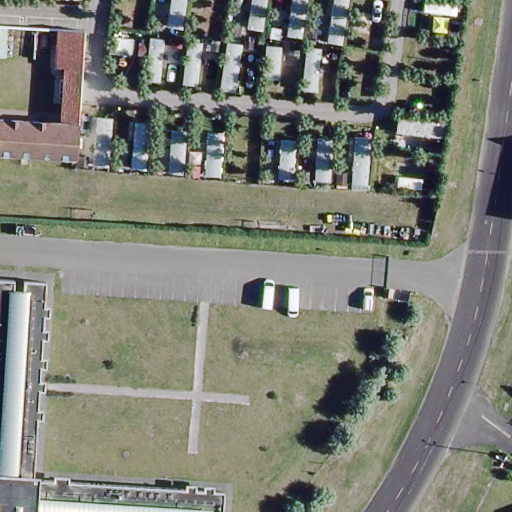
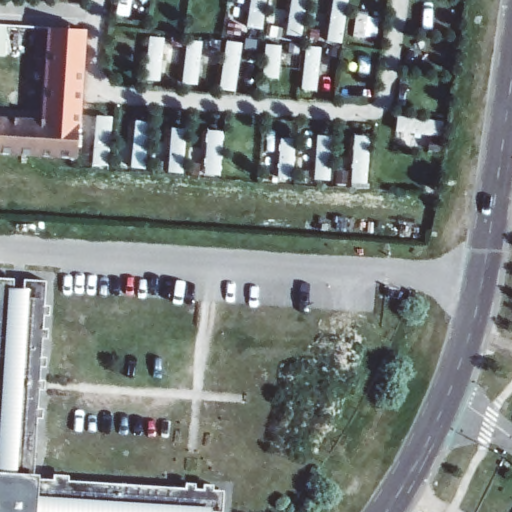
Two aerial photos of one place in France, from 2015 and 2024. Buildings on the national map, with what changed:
unchanged [(62,64),(55,64),(56,26),(84,28),(75,155),(0,150),(0,117),(59,121),(62,64)]
unchanged [(17,282),(28,283),(28,273),(50,275),(40,473),(232,483),(230,506),(218,505),(218,512),(0,512),(0,271),(18,272),(17,282)]

